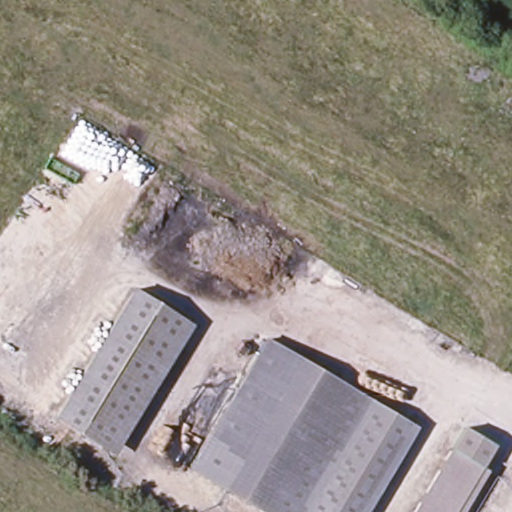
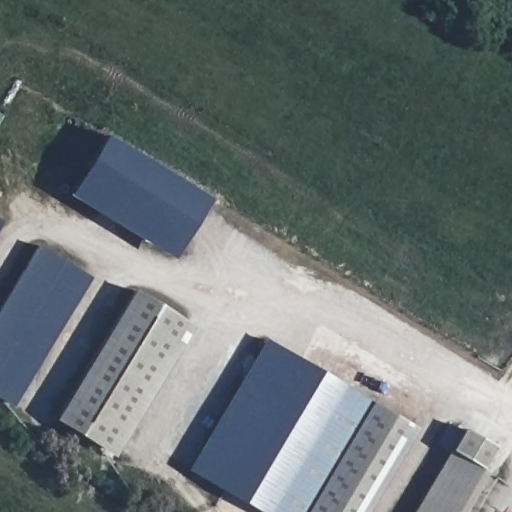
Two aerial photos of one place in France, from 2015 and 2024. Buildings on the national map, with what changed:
new [(104,135),(211,197),(174,258),(70,194),(104,135)]
new [(0,222),(0,221),(1,221),(0,222)]
new [(91,279),(12,407),(0,400),(0,308),(37,246),(91,279)]
unchanged [(112,451),(53,417),(129,288),(191,323),(112,451)]
unchanged [(299,512),(258,512),(254,509),(219,487),(187,468),(270,339),(300,358),(336,379),(370,400),(299,512)]
unchanged [(419,430),(370,512),(299,512),(370,400),(419,430)]
unchanged [(418,512),(467,435),(497,457),(461,512),(418,512)]

